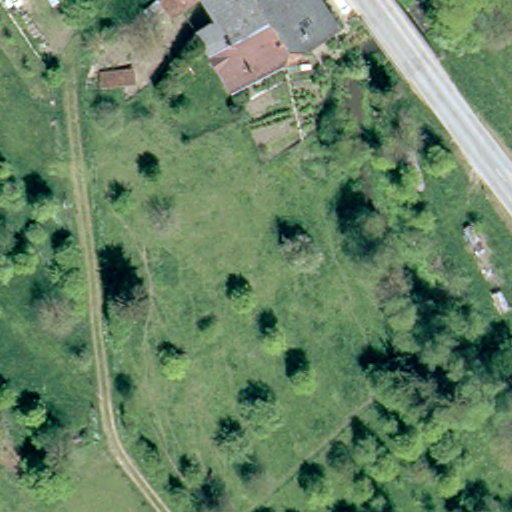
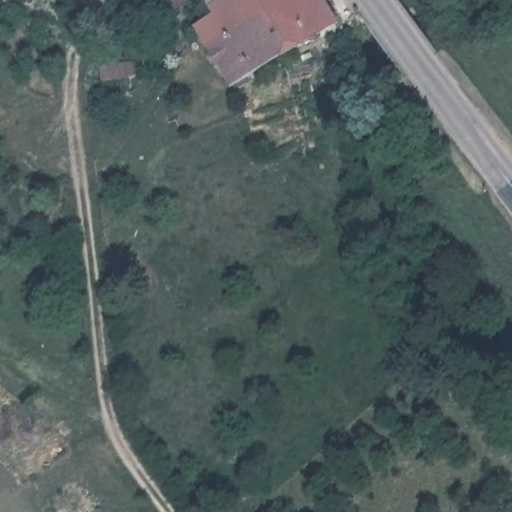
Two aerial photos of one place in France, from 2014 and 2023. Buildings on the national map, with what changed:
unchanged [(220,14),(213,4),(219,0),(321,0),(339,30),(235,90),(197,26),(220,14)]
unchanged [(212,0),(219,0),(213,4),(212,0)]

